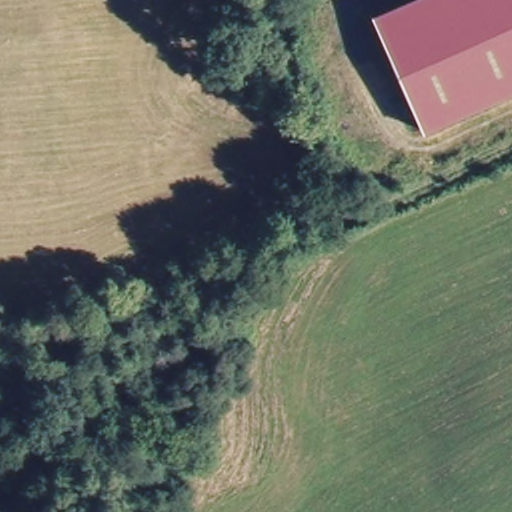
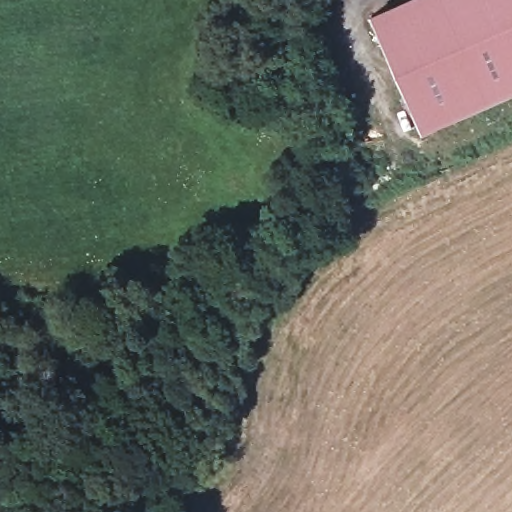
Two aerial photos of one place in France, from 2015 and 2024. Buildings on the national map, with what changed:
unchanged [(403,0),(512,0),(512,94),(423,132),(370,14),(403,0)]

